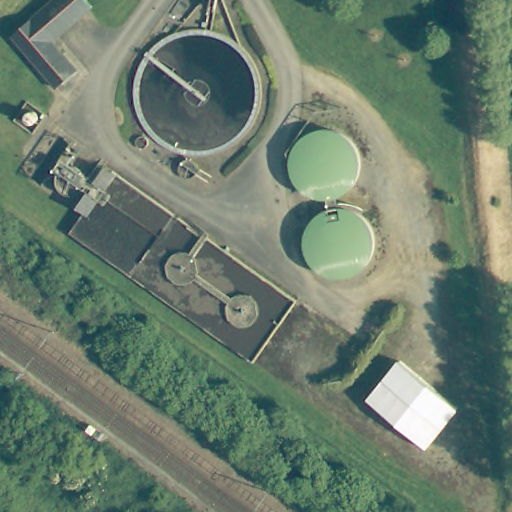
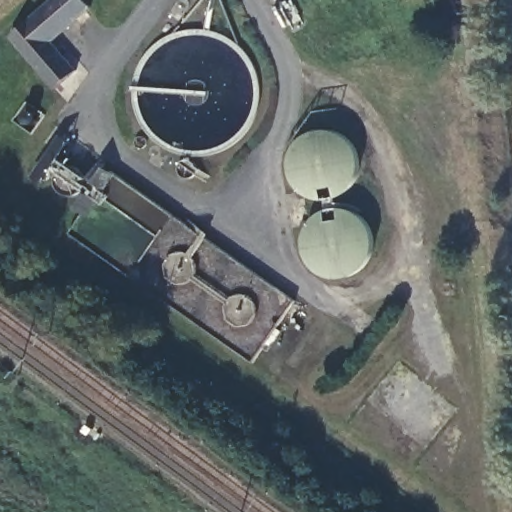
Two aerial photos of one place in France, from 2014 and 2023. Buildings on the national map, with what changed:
unchanged [(45,40),(72,71),(52,88),(9,37),(50,0),(81,0),(86,6),(45,40)]
unchanged [(36,112),(30,119),(25,114),(30,107),(36,112)]
unchanged [(75,136),(45,180),(34,172),(64,128),(75,136)]
unchanged [(142,134),(145,135),(147,137),(148,140),(147,143),(143,145),(140,145),(138,143),(137,140),(137,137),(140,135),(142,134)]
unchanged [(193,161),(196,164),(198,167),(199,171),(197,174),(194,178),(190,179),(186,179),(183,177),(180,170),(181,166),(183,163),(186,160),(189,160),(193,161)]
new [(397,361),(457,410),(425,448),(366,399),(397,361)]

